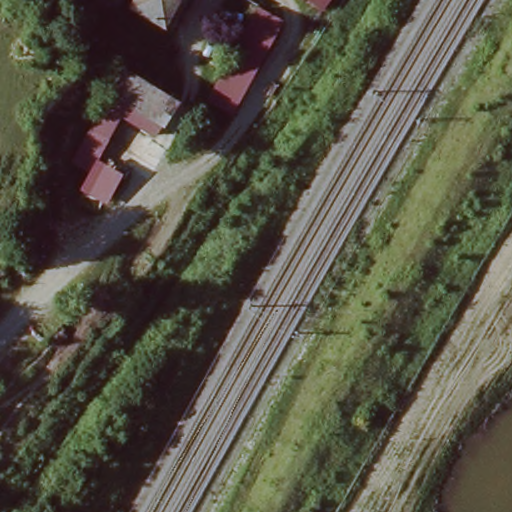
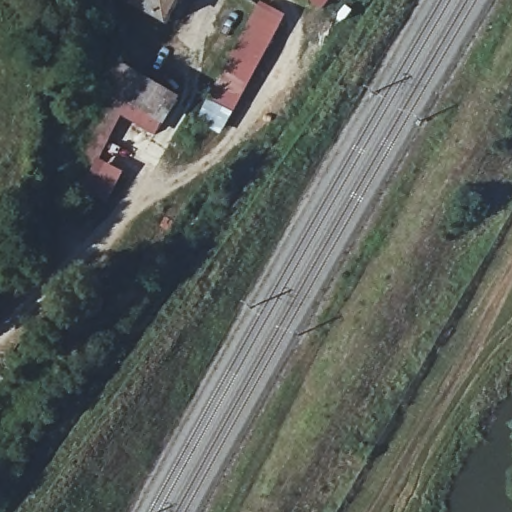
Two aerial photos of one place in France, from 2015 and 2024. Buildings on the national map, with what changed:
unchanged [(123,13),(130,0),(183,0),(166,34),(123,13)]
unchanged [(308,0),(334,0),(325,12),(308,0)]
unchanged [(234,117),(209,104),(256,9),(286,24),(234,117)]
unchanged [(182,102),(167,130),(106,91),(123,62),(182,102)]

